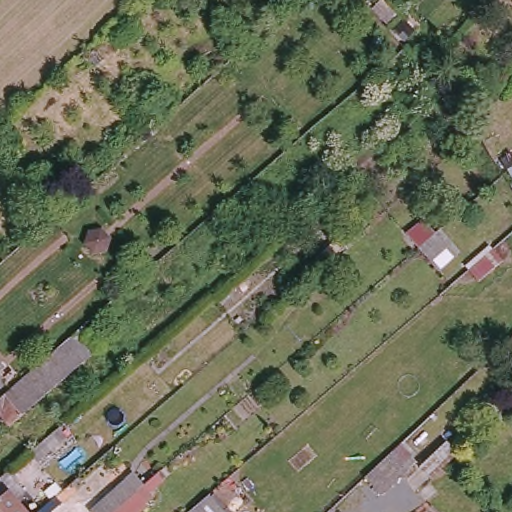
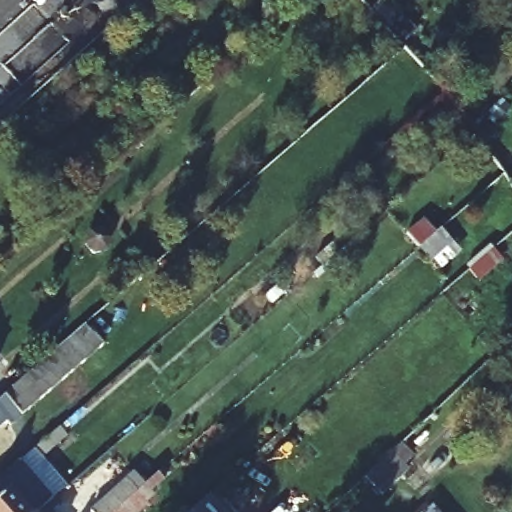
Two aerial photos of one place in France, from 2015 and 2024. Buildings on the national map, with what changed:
new [(9,99),(0,90),(0,33),(31,4),(69,43),(9,99)]
unchanged [(457,255),(435,273),(406,233),(429,215),(457,255)]
unchanged [(87,318),(108,343),(26,411),(13,396),(21,388),(14,380),(87,318)]
unchanged [(14,380),(21,388),(13,396),(26,411),(13,422),(3,412),(0,415),(0,393),(13,382),(14,380)]
unchanged [(59,430),(68,440),(54,453),(39,465),(30,455),(46,441),(59,430)]
unchanged [(457,457),(427,483),(414,466),(446,442),(457,457)]
unchanged [(389,452),(406,470),(379,495),(363,476),(389,452)]
unchanged [(31,512),(0,512),(0,485),(4,481),(13,474),(23,486),(33,496),(24,504),(31,512)]
unchanged [(93,507),(131,475),(141,488),(153,502),(142,512),(98,512),(93,507)]
unchanged [(191,512),(209,496),(223,512),(191,512)]
unchanged [(66,507),(71,512),(44,512),(60,498),(66,507)]

